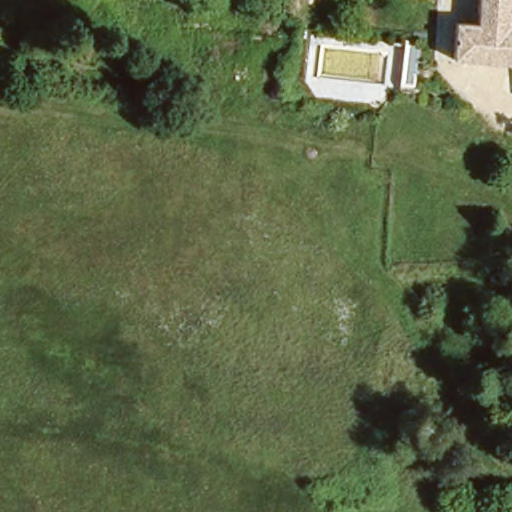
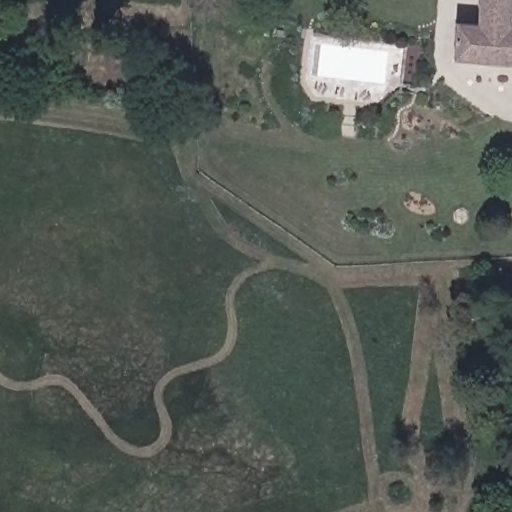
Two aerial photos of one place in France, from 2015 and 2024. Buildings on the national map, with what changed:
unchanged [(448,60),(451,22),(473,24),(474,0),(508,0),(505,25),(512,26),(512,65),(448,60)]

